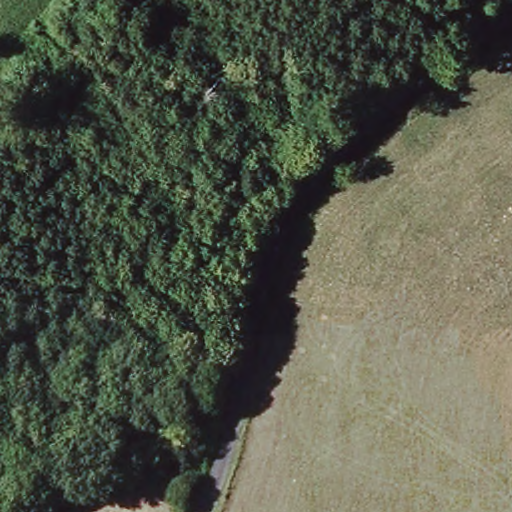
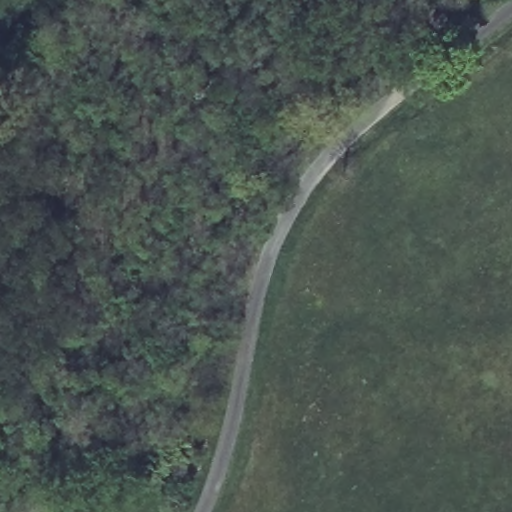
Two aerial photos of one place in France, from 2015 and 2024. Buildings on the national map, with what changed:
unchanged [(225,64),(213,70),(207,56),(219,52),(225,64)]

